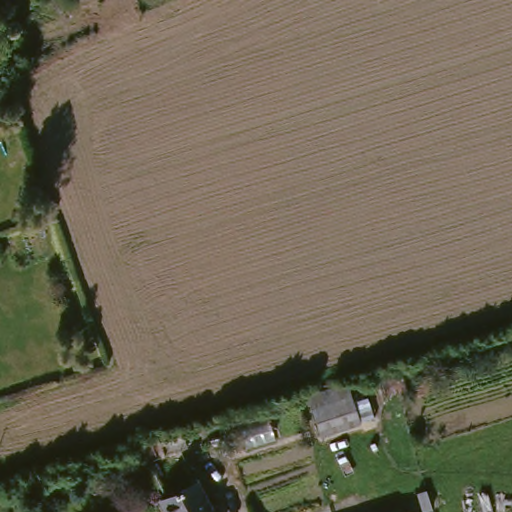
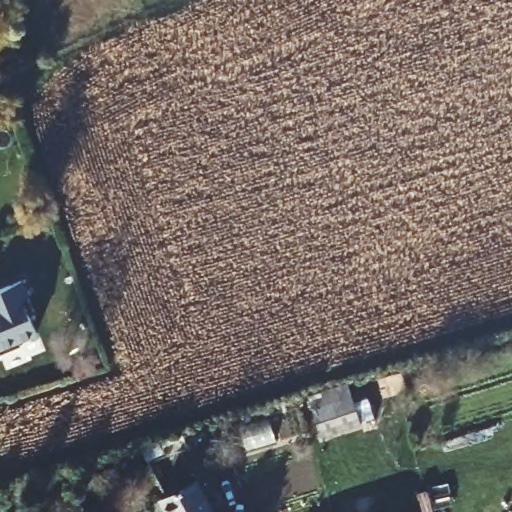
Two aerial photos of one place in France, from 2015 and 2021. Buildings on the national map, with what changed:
new [(21,282),(33,312),(27,314),(35,332),(18,339),(22,348),(1,357),(0,355),(0,291),(21,282)]
unchanged [(317,436),(304,394),(348,383),(354,392),(366,386),(377,419),(317,436)]
unchanged [(193,484),(207,512),(161,512),(156,501),(193,484)]

